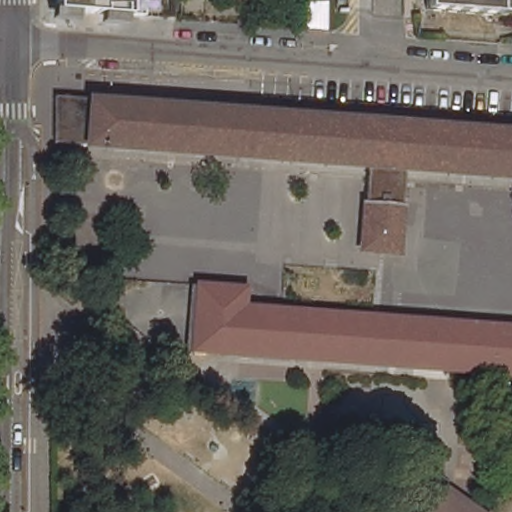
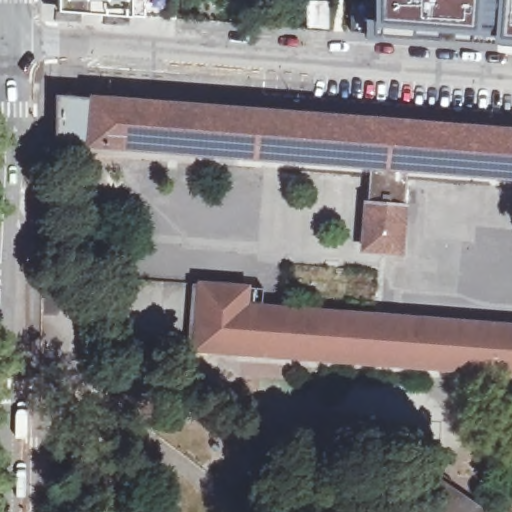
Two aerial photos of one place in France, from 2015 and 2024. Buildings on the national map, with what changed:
unchanged [(175,19),(146,15),(131,14),(92,12),(65,12),(67,0),(175,0),(175,19)]
unchanged [(330,30),(325,30),(312,29),(307,28),(308,0),(325,0),(330,0),(330,30)]
new [(378,29),(377,0),(512,0),(512,47),(378,29)]
demolished [(502,4),(502,13),(428,8),(429,0),(512,0),(512,5),(502,4)]
unchanged [(57,94),(95,97),(112,99),(113,99),(217,107),(244,109),(374,119),(376,119),(392,120),(395,120),(410,122),(412,122),(512,129),(512,175),(409,167),(401,250),(364,248),(370,164),(57,141),(57,94)]
unchanged [(328,357),(321,356),(320,357),(310,356),(304,355),(304,356),(302,355),(295,354),(295,355),(240,351),(197,347),(191,347),(195,284),(202,285),(245,288),(244,304),(512,325),(512,372),(328,357)]
unchanged [(482,512),(409,512),(432,477),(482,512)]

